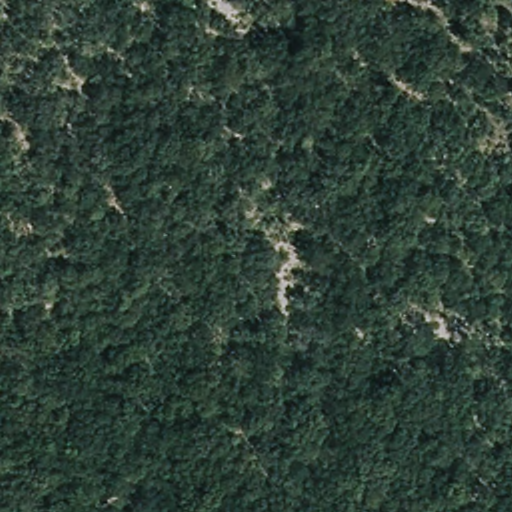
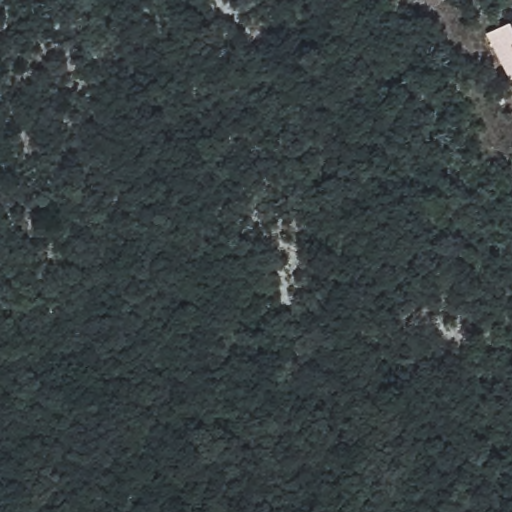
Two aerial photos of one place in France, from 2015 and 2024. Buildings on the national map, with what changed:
new [(512,33),(512,77),(507,79),(483,34),(506,22),(512,33)]

